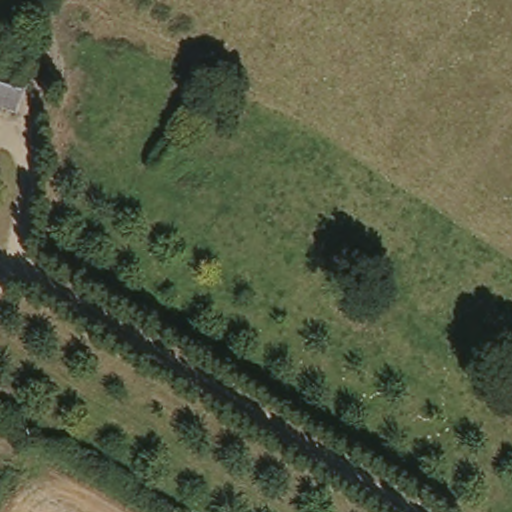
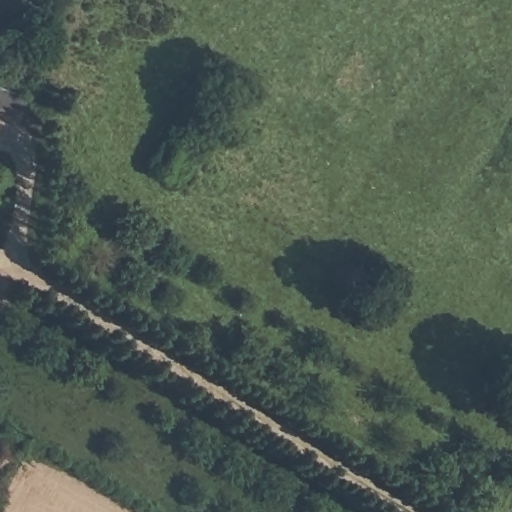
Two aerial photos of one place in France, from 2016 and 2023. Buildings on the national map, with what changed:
unchanged [(5,79),(29,87),(17,122),(0,116),(0,77),(5,79)]
unchanged [(171,179),(151,168),(157,157),(163,145),(169,148),(174,143),(187,150),(173,175),(171,179)]

